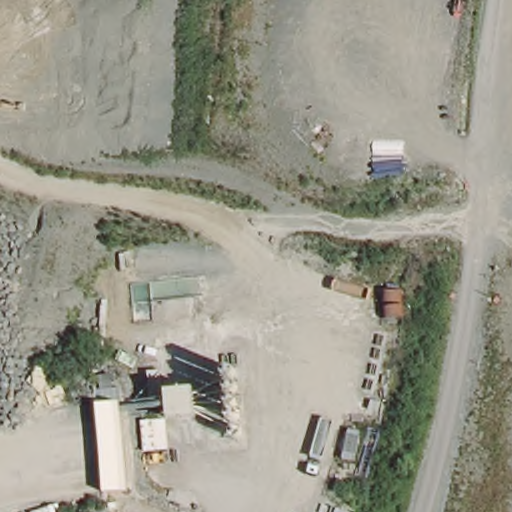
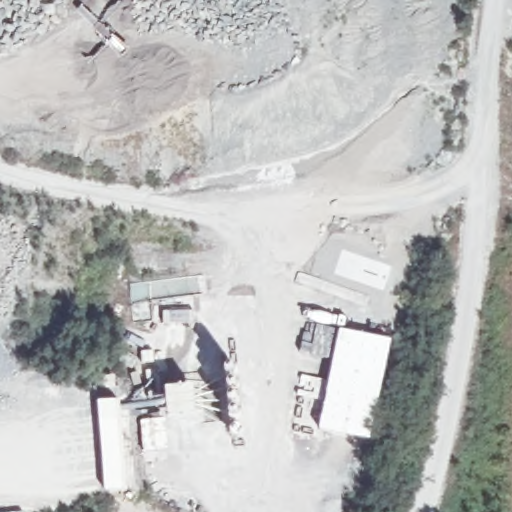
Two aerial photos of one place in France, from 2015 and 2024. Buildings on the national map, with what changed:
new [(330,368),(340,328),(392,340),(372,441),(317,430),(330,368)]
unchanged [(196,381),(197,416),(169,421),(166,385),(196,381)]
unchanged [(125,491),(103,493),(97,404),(119,401),(125,491)]
unchanged [(164,414),(167,449),(140,453),(136,421),(164,414)]

